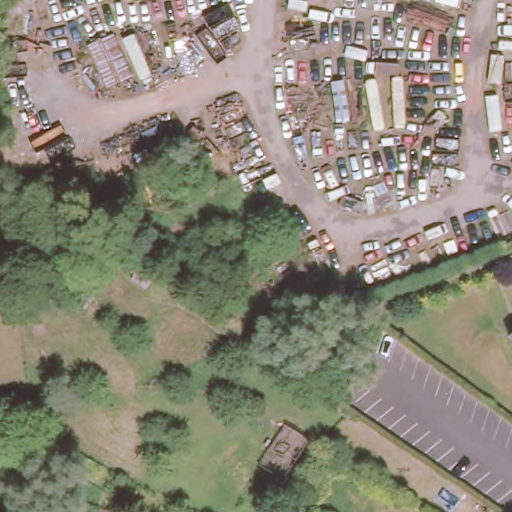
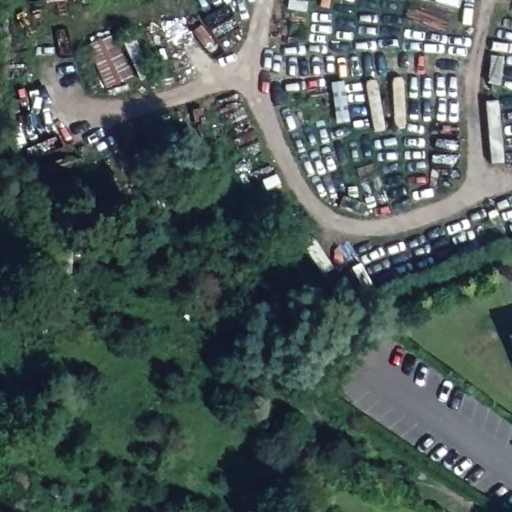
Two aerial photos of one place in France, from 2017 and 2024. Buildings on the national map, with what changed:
unchanged [(508,340),(512,339),(512,349),(508,340)]

